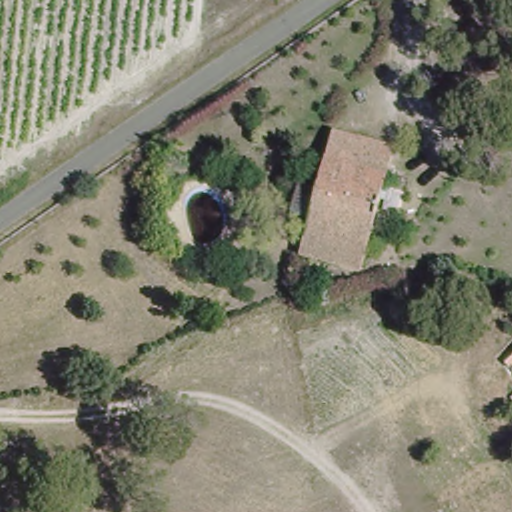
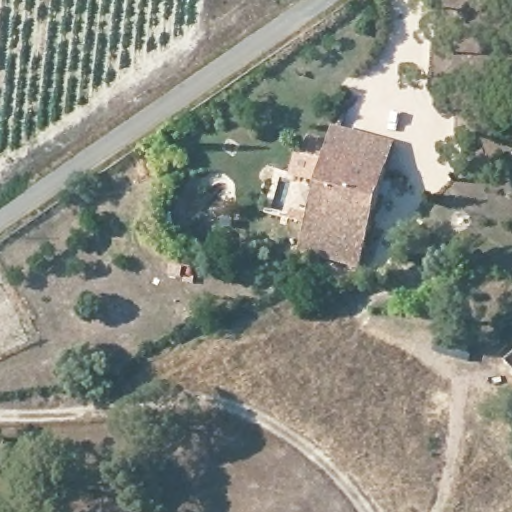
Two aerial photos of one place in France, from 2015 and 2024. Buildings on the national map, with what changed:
unchanged [(335,125),(397,141),(382,177),(327,162),(335,125)]
unchanged [(327,162),(382,177),(360,269),(305,252),(327,162)]

